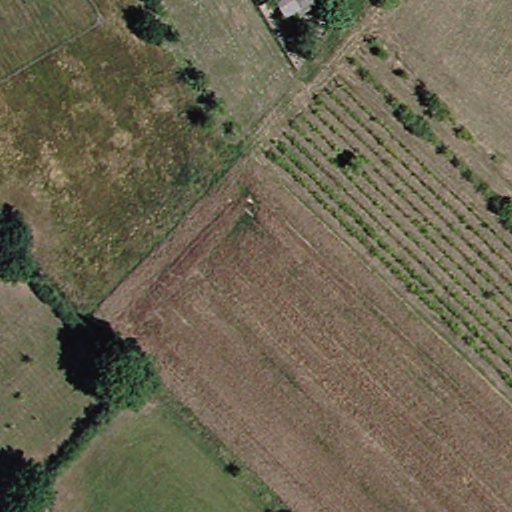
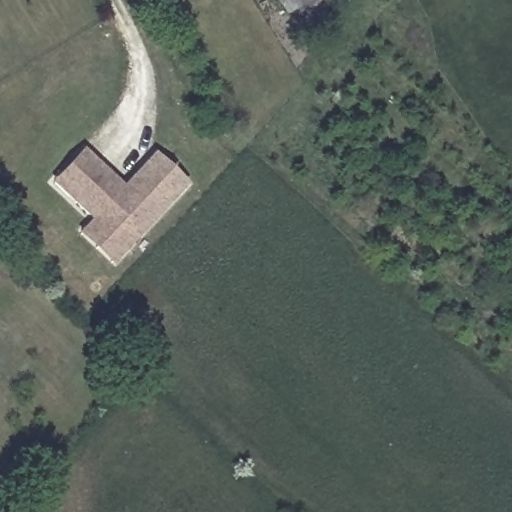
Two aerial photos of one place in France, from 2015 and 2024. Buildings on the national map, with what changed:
unchanged [(292,17),(283,0),(322,0),(292,17)]
unchanged [(331,3),(328,0),(336,0),(331,3)]
new [(77,236),(91,221),(52,185),(82,150),(124,187),(154,154),(189,185),(112,267),(77,236)]

